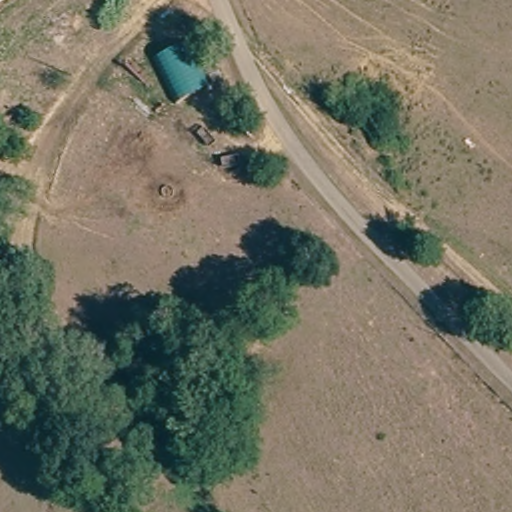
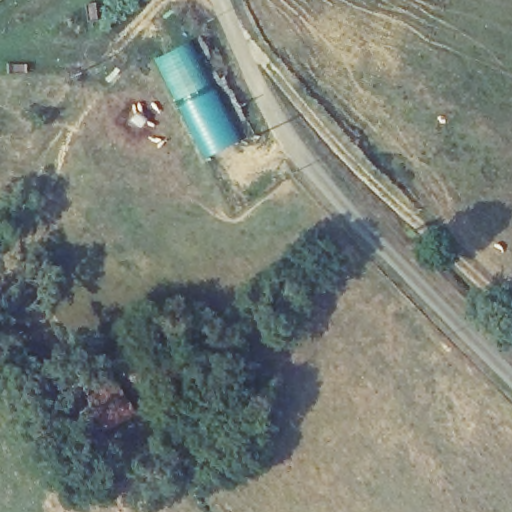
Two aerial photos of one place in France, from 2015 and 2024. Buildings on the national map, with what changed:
unchanged [(207,87),(176,103),(154,60),(183,46),(207,87)]
new [(207,87),(234,142),(202,158),(176,103),(207,87)]
unchanged [(139,408),(102,442),(76,411),(113,377),(139,408)]

